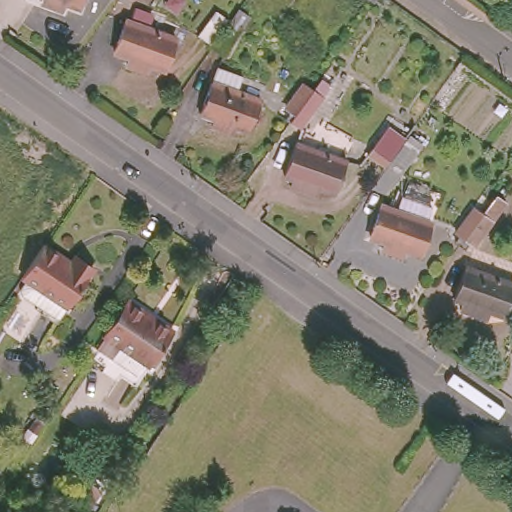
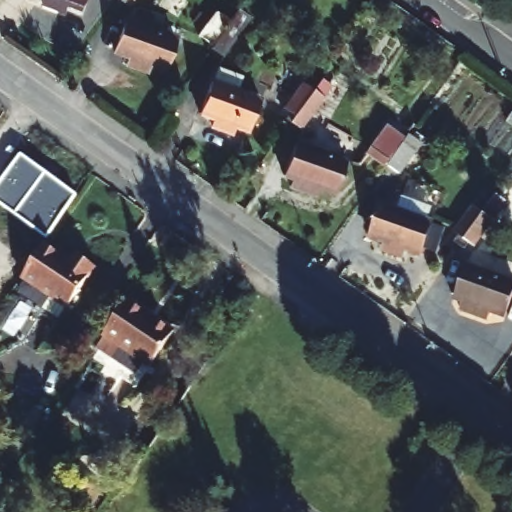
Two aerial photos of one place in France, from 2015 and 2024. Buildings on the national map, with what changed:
unchanged [(64,3),(61,11),(43,4),(44,0),(82,0),(79,9),(64,3)]
unchanged [(215,12),(227,20),(211,44),(198,36),(215,12)]
unchanged [(174,40),(164,70),(149,65),(147,72),(128,66),(130,57),(115,52),(125,22),(174,40)]
unchanged [(225,56),(213,46),(228,24),(241,34),(225,56)]
unchanged [(293,125),(288,121),(283,117),(288,111),(281,107),(299,82),(311,66),(321,74),(331,81),(319,97),(302,122),(297,119),(293,125)]
unchanged [(261,102),(251,132),(234,126),(232,134),(211,127),(214,120),(199,115),(210,84),(261,102)]
unchanged [(387,127),(402,138),(384,163),(369,152),(387,127)]
unchanged [(400,175),(387,165),(404,141),(418,150),(400,175)]
unchanged [(344,163),(334,192),(319,187),(316,194),(298,188),(301,180),(284,175),(294,146),(344,163)]
new [(0,204),(0,183),(21,155),(77,196),(47,238),(0,204)]
unchanged [(464,249),(459,245),(454,240),(458,234),(454,230),(471,207),(483,190),(493,197),(503,205),(492,222),(475,246),(469,242),(464,249)]
unchanged [(431,222),(420,253),(405,248),(402,257),(383,250),(386,242),(371,236),(381,206),(431,222)]
unchanged [(43,307),(18,291),(26,279),(21,276),(43,243),(70,261),(73,257),(92,269),(68,306),(58,317),(43,307)]
unchanged [(512,290),(504,316),(490,311),(487,319),(468,312),(471,303),(456,298),(466,268),(512,284),(512,290)]
unchanged [(112,358),(120,346),(103,335),(127,300),(174,332),(151,366),(146,363),(138,376),(112,358)]

